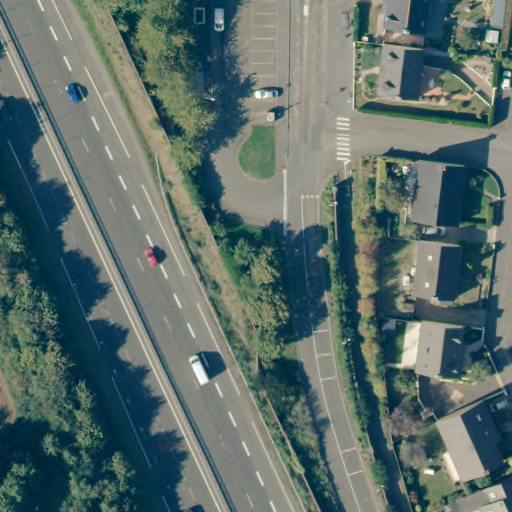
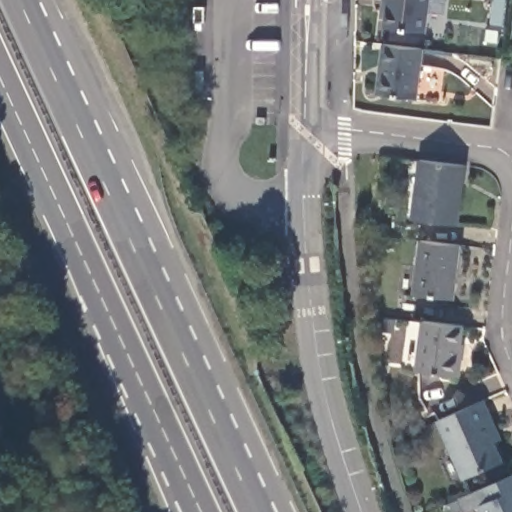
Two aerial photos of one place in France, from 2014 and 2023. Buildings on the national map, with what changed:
unchanged [(390,22),(393,0),(434,0),(430,27),(390,22)]
unchanged [(205,5),(205,21),(193,21),(193,5),(205,5)]
unchanged [(205,45),(197,45),(197,30),(205,30),(205,45)]
unchanged [(418,97),(379,92),(385,44),(424,49),(418,97)]
unchanged [(458,226),(413,220),(420,160),(465,166),(458,226)]
unchanged [(454,300),(415,295),(421,240),(461,245),(454,300)]
unchanged [(469,338),(468,351),(465,371),(421,365),(428,317),(469,322),(466,338),(469,338)]
unchanged [(499,441),(494,443),(502,462),(464,478),(438,421),(483,401),(493,426),(499,441)]
unchanged [(482,502),(467,508),(466,505),(456,510),(451,498),(461,493),(480,485),(512,471),(512,512),(487,512),(482,502)]

